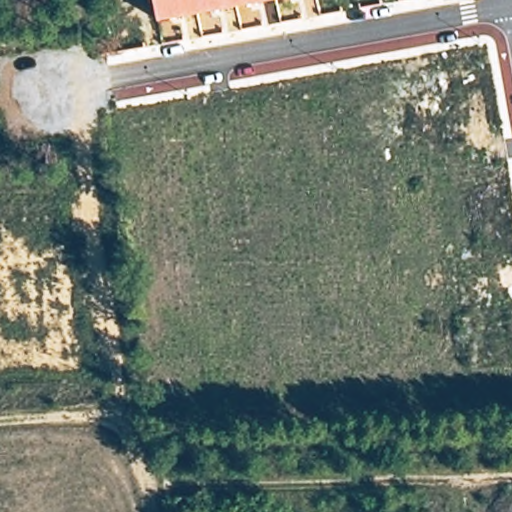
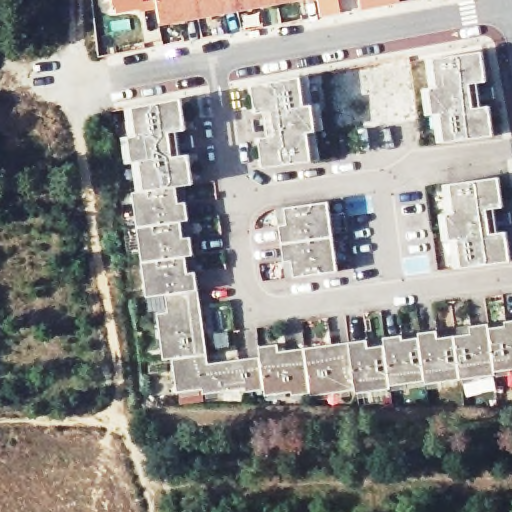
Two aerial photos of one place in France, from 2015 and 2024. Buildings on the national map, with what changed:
new [(112,1),(112,0),(154,0),(155,4),(138,7),(137,4),(114,9),(112,1)]
unchanged [(197,15),(157,21),(155,4),(154,0),(194,0),(197,15)]
unchanged [(236,7),(197,15),(194,0),(235,0),(236,7)]
unchanged [(236,7),(235,0),(275,0),(236,7)]
new [(338,9),(318,12),(316,0),(337,0),(338,9)]
new [(435,115),(427,115),(423,89),(430,88),(426,60),(435,59),(483,51),(487,83),(465,86),(469,110),(491,107),(495,135),(446,142),(438,143),(435,115)]
new [(262,168),(259,138),(281,135),(278,111),(256,114),(253,85),(301,76),(309,75),(312,105),(320,105),(323,130),(315,131),(319,161),(311,162),(262,168)]
new [(197,273),(200,292),(167,295),(149,297),(145,262),(141,227),(137,192),(140,192),(137,163),(130,164),(127,137),(135,136),(131,109),(138,107),(187,99),(191,131),(169,134),(171,159),(193,156),(197,185),(189,186),(190,204),(192,222),(193,222),(195,239),(193,239),(195,257),(196,257),(198,273),(197,273)]
new [(445,241),(441,215),(448,214),(445,185),(452,184),(501,176),(505,208),(483,211),(487,236),(509,232),(512,256),(512,261),(465,267),(456,268),(452,240),(445,241)]
new [(279,243),(277,225),(276,225),(274,210),(282,209),(326,204),(330,237),(334,271),(290,276),(282,277),(280,261),(281,261),(279,243)]
new [(200,292),(206,356),(172,360),(163,361),(158,314),(169,313),(167,295),(200,292)]
new [(367,346),(367,345),(383,344),(384,345),(402,343),(402,342),(419,340),(419,341),(437,340),(437,338),(454,337),(470,335),(470,336),(490,334),(489,333),(505,331),(505,332),(512,332),(512,380),(494,382),(495,385),(460,389),(424,393),(424,390),(388,393),(389,396),(354,400),(353,397),(348,348),(367,346)]
new [(309,398),(290,400),(290,397),(264,400),(263,393),(245,395),(244,392),(241,362),(259,360),(258,350),(277,348),(278,355),(303,353),(309,398)]
new [(353,397),(310,401),(309,398),(303,353),(348,348),(353,397)]
new [(206,356),(207,365),(241,362),(244,392),(202,396),(201,391),(175,394),(172,360),(206,356)]
unchanged [(174,512),(172,500),(197,498),(198,512),(174,512)]

